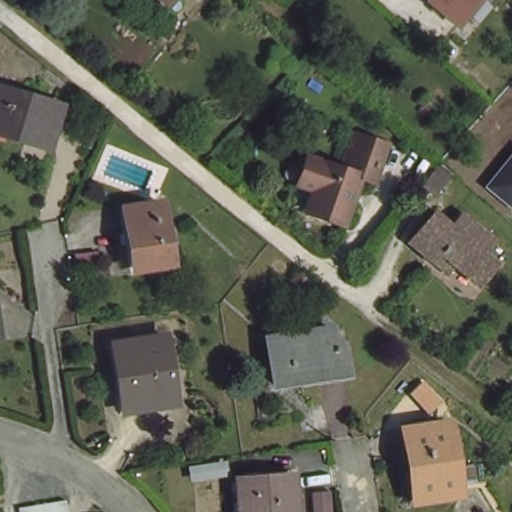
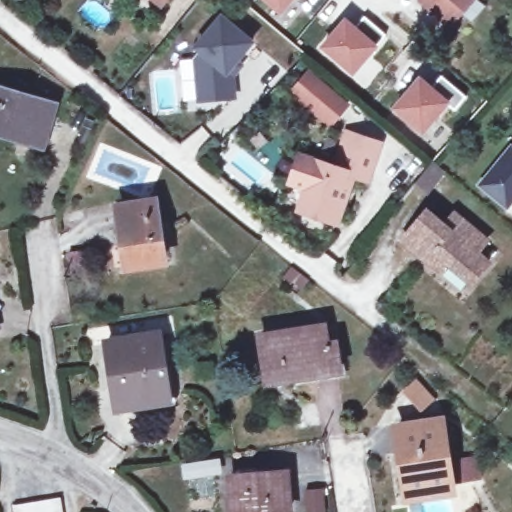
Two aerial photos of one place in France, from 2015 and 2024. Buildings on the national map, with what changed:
unchanged [(138,0),(171,0),(159,15),(138,0)]
new [(262,0),(293,0),(280,15),(262,0)]
unchanged [(418,0),(475,0),(450,27),(417,1),(418,0)]
new [(235,75),(237,96),(202,100),(198,59),(205,51),(200,47),(224,16),(254,41),(238,60),(243,64),(235,75)]
new [(345,24),(353,32),(363,20),(385,38),(352,77),(322,51),(345,24)]
new [(418,83),(430,92),(440,79),(465,100),(453,113),(446,107),(422,135),(394,112),(418,83)]
new [(312,80),(346,108),(330,128),(295,99),(312,80)]
unchanged [(45,141),(0,129),(0,89),(54,103),(45,141)]
unchanged [(351,170),(335,216),(299,204),(307,182),(290,177),(300,151),(333,163),(342,139),(345,127),(379,139),(375,151),(367,175),(351,170)]
unchanged [(510,143),(512,141),(512,209),(510,213),(477,185),(510,143)]
unchanged [(152,206),(162,264),(125,268),(117,211),(152,206)]
unchanged [(488,260),(472,282),(447,261),(438,271),(402,243),(426,213),(442,226),(452,212),(487,242),(479,253),(488,260)]
unchanged [(72,252),(90,250),(92,275),(75,277),(72,252)]
unchanged [(274,384),(267,335),(328,325),(330,346),(341,344),(346,373),(274,384)]
unchanged [(104,341),(157,333),(166,398),(113,405),(104,341)]
unchanged [(391,431),(442,423),(453,490),(402,498),(391,431)]
unchanged [(287,512),(237,512),(232,479),(285,471),(290,511),(287,512)]
unchanged [(304,489),(322,486),(326,512),(307,512),(304,489)]
unchanged [(56,494),(58,512),(14,512),(12,500),(56,494)]

